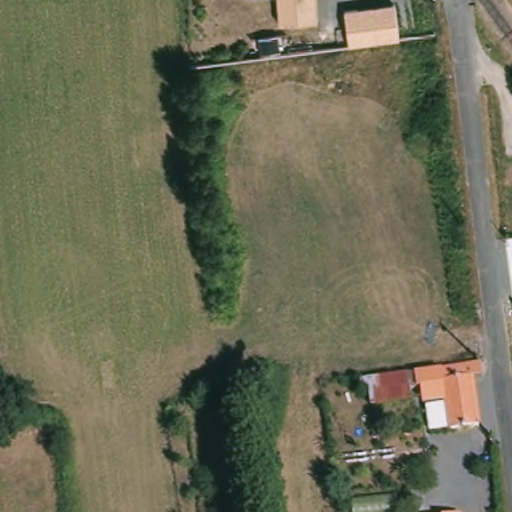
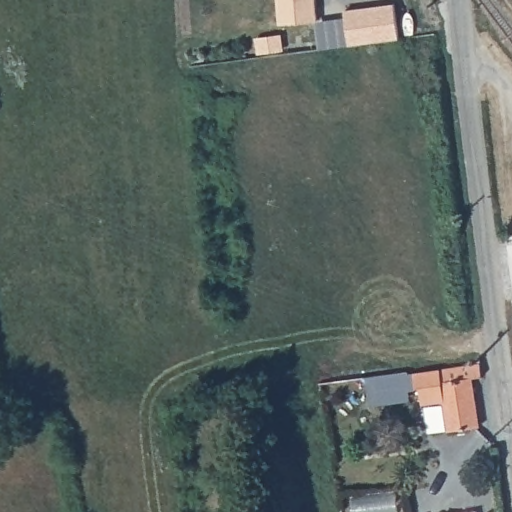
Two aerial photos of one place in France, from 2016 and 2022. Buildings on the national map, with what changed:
unchanged [(280,23),(279,0),(319,0),(320,21),(280,23)]
unchanged [(396,6),(401,40),(352,46),(348,13),(396,6)]
unchanged [(474,378),(478,429),(444,431),(442,411),(442,399),(420,401),(416,379),(440,375),(439,368),(439,367),(486,361),(488,377),(474,378)]
unchanged [(416,379),(420,401),(367,407),(364,384),(416,379)]

